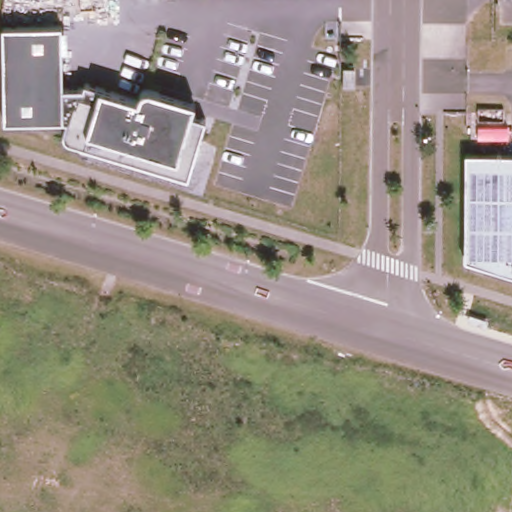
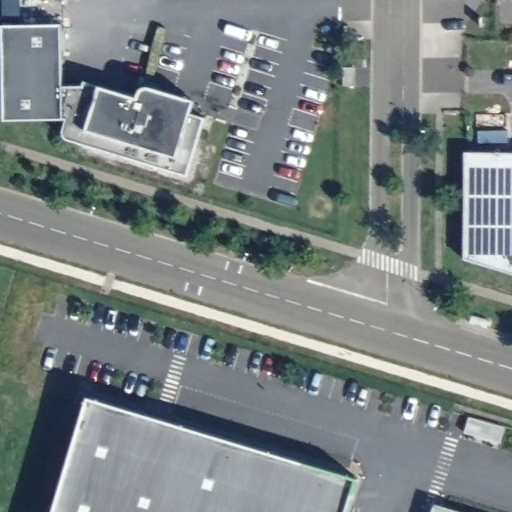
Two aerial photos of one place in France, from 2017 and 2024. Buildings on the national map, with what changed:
unchanged [(191,114),(203,119),(187,174),(61,134),(65,118),(4,119),(1,26),(61,26),(63,86),(83,86),(85,80),(103,87),(137,98),(143,88),(149,86),(194,101),(191,114)]
unchanged [(512,154),(512,273),(464,259),(466,154),(512,154)]
new [(344,512),(54,512),(91,396),(353,477),(344,512)]

